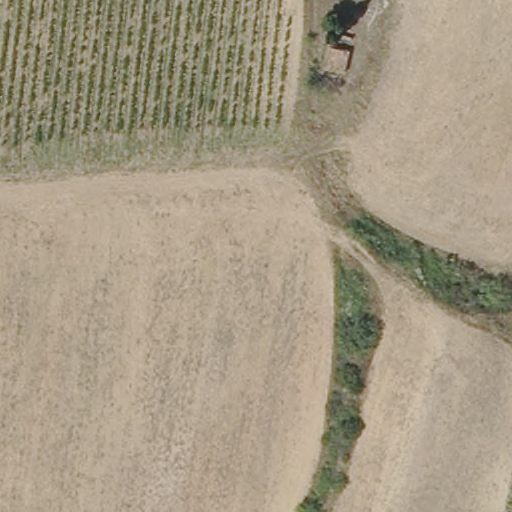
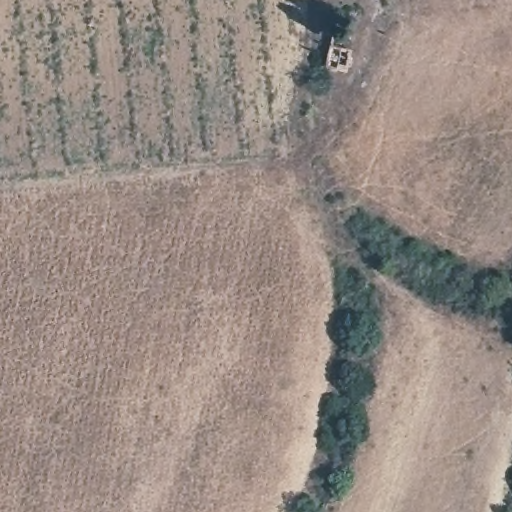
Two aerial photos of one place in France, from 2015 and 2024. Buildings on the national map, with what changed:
unchanged [(347,36),(367,41),(360,77),(339,72),(347,36)]

